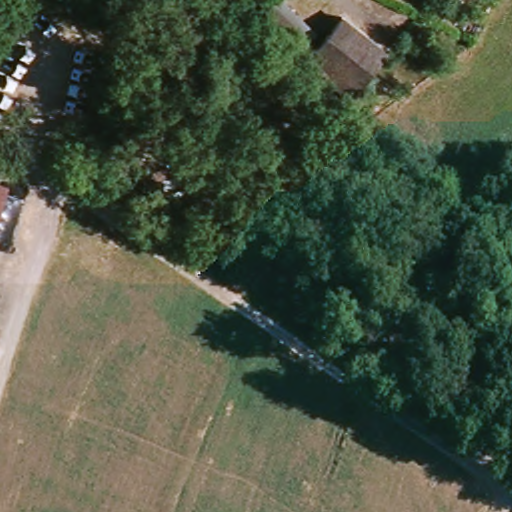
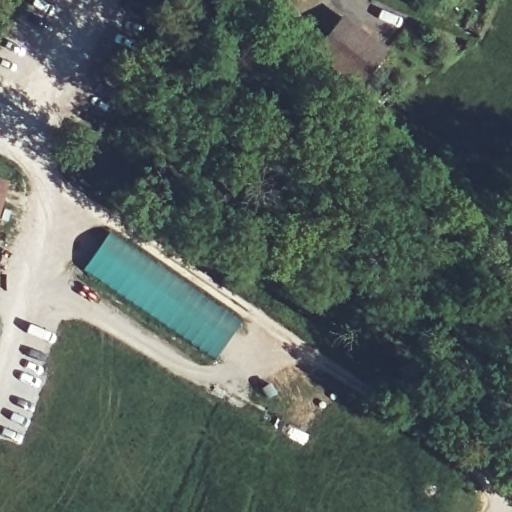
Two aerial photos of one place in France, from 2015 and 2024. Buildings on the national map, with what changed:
unchanged [(357,82),(347,94),(310,53),(315,48),(314,47),(342,12),(385,46),(357,82)]
unchanged [(0,194),(0,182),(3,182),(0,194)]
new [(240,321),(215,359),(82,269),(110,232),(240,321)]

